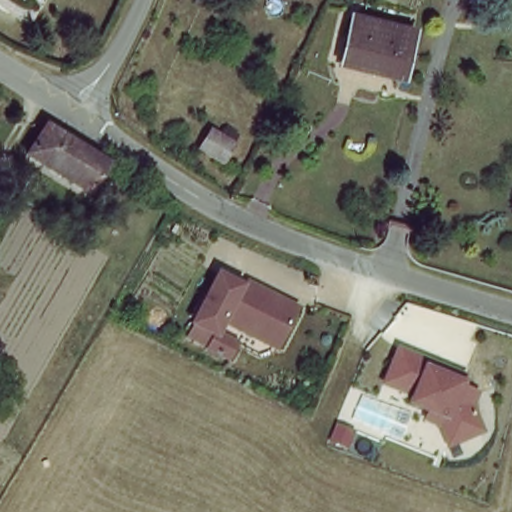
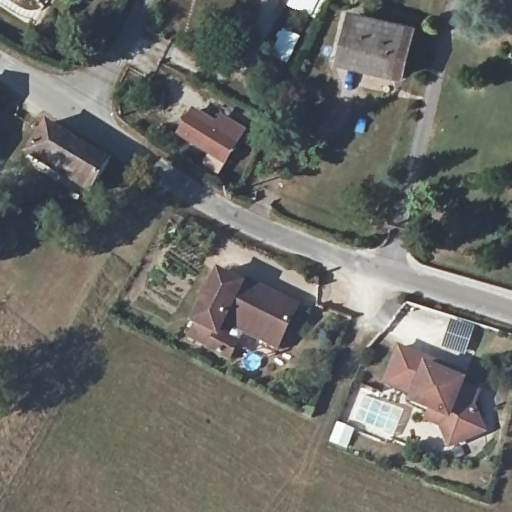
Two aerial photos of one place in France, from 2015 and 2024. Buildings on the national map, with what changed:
unchanged [(380,10),(384,0),(398,0),(391,15),(380,10)]
unchanged [(401,78),(343,68),(353,18),(410,26),(401,78)]
new [(218,123),(223,116),(251,131),(231,172),(178,143),(195,110),(218,123)]
unchanged [(33,149),(49,124),(113,163),(97,189),(33,149)]
demolished [(228,160),(202,146),(212,125),(240,138),(228,160)]
unchanged [(225,349),(205,339),(212,324),(190,314),(213,264),(241,277),(243,273),(292,297),(273,337),(220,311),(213,324),(233,333),(225,349)]
unchanged [(447,364),(444,371),(468,380),(466,384),(477,389),(472,403),(486,433),(448,451),(438,427),(424,422),(427,413),(409,406),(412,396),(380,383),(395,345),(447,364)]

